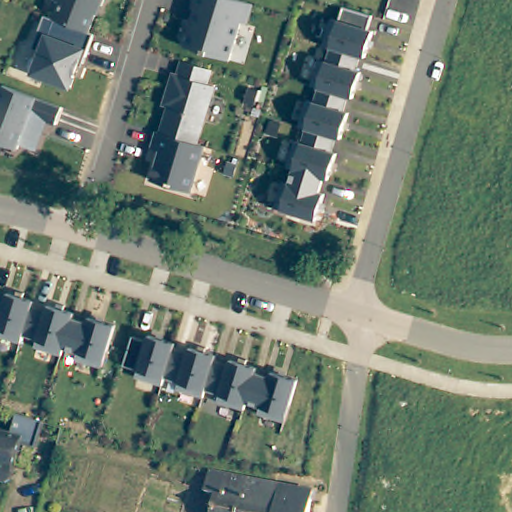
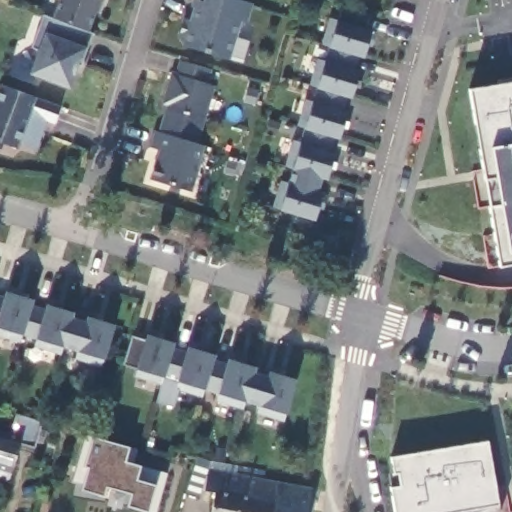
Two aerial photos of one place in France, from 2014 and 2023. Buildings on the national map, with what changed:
unchanged [(98,16),(94,15),(87,33),(93,35),(78,78),(74,78),(70,90),(29,76),(38,53),(31,49),(44,16),(53,19),(60,0),(104,0),(98,16)]
unchanged [(253,4),(247,26),(239,23),(229,61),(181,46),(195,0),(242,0),(253,4)]
unchanged [(370,16),(366,29),(372,30),(364,58),(358,57),(354,69),(360,72),(351,99),(346,98),(342,112),(348,113),(339,140),(333,138),(330,152),(335,153),(327,180),(322,179),(318,194),(323,196),(315,222),(279,210),(338,21),(342,7),(370,16)]
unchanged [(178,75),(182,60),(212,69),(207,84),(214,87),(197,143),(204,145),(190,193),(149,181),(158,152),(149,148),(155,130),(160,131),(167,107),(160,106),(170,72),(178,75)]
new [(468,90),(512,82),(512,264),(499,266),(468,90)]
unchanged [(37,98),(60,107),(55,125),(45,122),(35,150),(19,143),(17,149),(0,143),(0,89),(1,85),(37,98)]
unchanged [(104,359),(101,368),(74,360),(76,352),(63,348),(61,354),(33,347),(35,340),(22,336),(20,343),(0,336),(0,298),(4,300),(6,293),(31,300),(49,305),(74,313),(72,319),(87,324),(89,317),(115,326),(104,359)]
unchanged [(296,380),(286,413),(284,421),(257,414),(258,407),(245,404),(243,410),(216,402),(218,394),(203,391),(201,398),(173,390),(174,382),(164,379),(161,386),(134,378),(135,370),(123,366),(132,337),(146,341),(147,335),(175,343),(172,349),(187,354),(189,349),(216,356),(214,361),(227,366),(229,361),(256,368),(254,373),(268,376),(269,372),(296,380)]
unchanged [(12,430),(18,410),(46,419),(37,445),(31,465),(17,461),(12,476),(7,479),(0,476),(0,426),(12,430)]
new [(91,436),(93,437),(129,447),(137,449),(137,464),(141,466),(168,473),(156,512),(151,512),(147,511),(128,505),(131,494),(106,487),(103,497),(81,490),(83,483),(73,482),(85,435),(91,436)]
new [(499,512),(394,512),(389,487),(391,486),(388,474),(393,474),(390,457),(488,441),(498,504),(499,512)]
unchanged [(213,492),(217,472),(287,484),(282,512),(219,512),(222,494),(213,492)]
unchanged [(315,512),(282,512),(287,484),(318,490),(315,512)]

